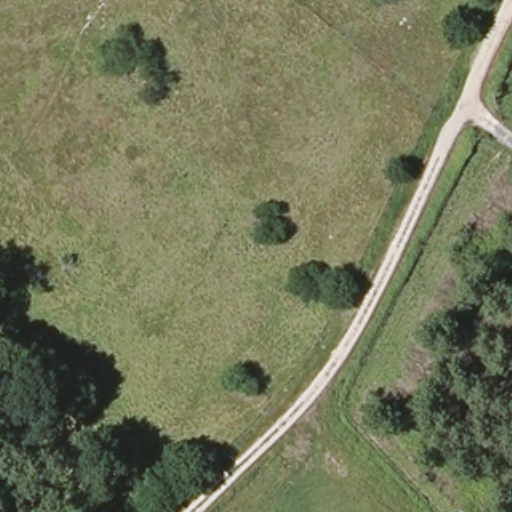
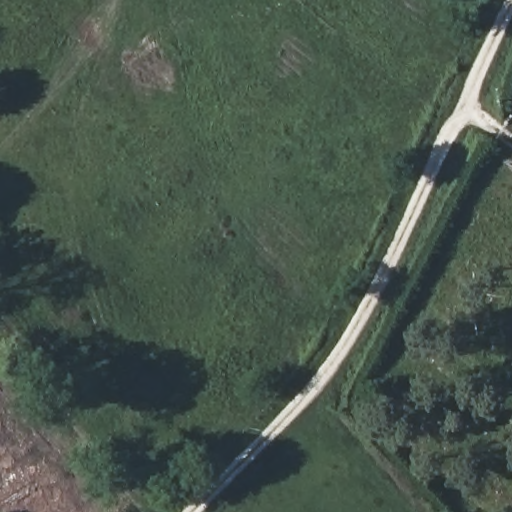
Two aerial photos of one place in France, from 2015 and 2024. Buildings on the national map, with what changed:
[]

